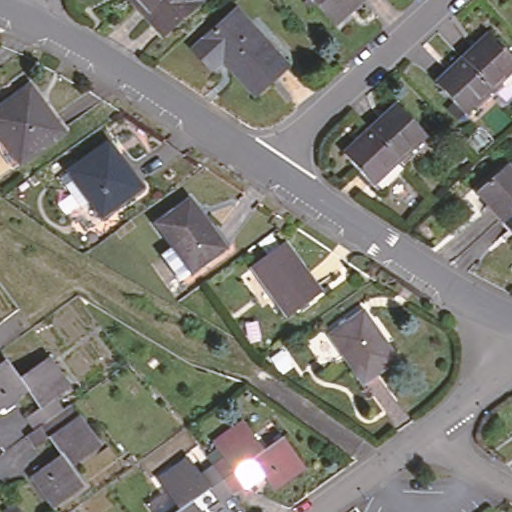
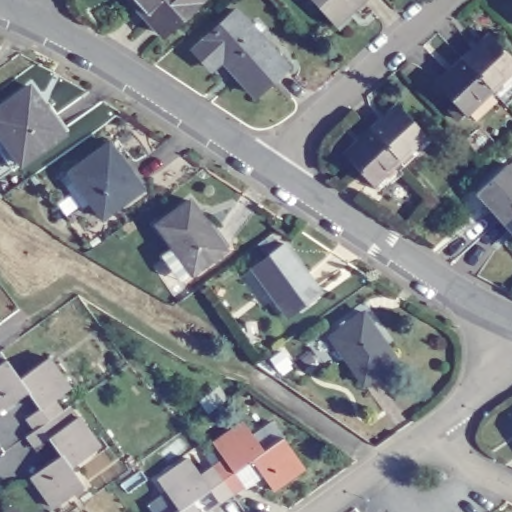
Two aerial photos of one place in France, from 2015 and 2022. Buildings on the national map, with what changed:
unchanged [(132,2),(134,0),(192,0),(157,31),(132,2)]
unchanged [(313,0),(354,0),(332,20),(313,0)]
unchanged [(234,7),(284,62),(252,90),(219,53),(207,63),(191,45),(234,7)]
unchanged [(458,55),(485,30),(512,59),(512,60),(485,85),(458,55)]
unchanged [(459,109),(432,79),(458,55),(485,85),(459,109)]
unchanged [(59,130),(16,160),(0,137),(0,101),(27,83),(59,130)]
unchanged [(367,126),(394,102),(422,131),(394,156),(367,126)]
unchanged [(367,180),(340,150),(367,126),(394,156),(367,180)]
unchanged [(105,135),(137,180),(96,209),(64,163),(105,135)]
unchanged [(467,185),(498,157),(512,173),(512,193),(492,212),(467,185)]
unchanged [(187,193),(220,242),(187,265),(154,216),(187,193)]
unchanged [(512,193),(512,235),(492,212),(512,193)]
unchanged [(280,209),(295,220),(288,231),(272,221),(280,209)]
unchanged [(282,243),(316,290),(283,313),(250,266),(282,243)]
unchanged [(359,305),(392,352),(359,376),(325,329),(359,305)]
unchanged [(71,463),(84,482),(54,504),(32,472),(60,451),(47,435),(34,445),(25,433),(33,427),(25,415),(38,405),(27,388),(0,406),(0,361),(6,356),(19,374),(47,355),(69,385),(53,396),(61,407),(66,403),(75,415),(77,413),(99,444),(71,463)]
unchanged [(207,463),(219,455),(207,440),(239,418),(258,447),(277,435),(299,465),(267,486),(247,457),(229,470),(238,482),(227,490),(207,463)]
unchanged [(152,478),(184,456),(195,471),(207,463),(227,490),(214,500),(205,486),(187,498),(197,512),(148,512),(141,502),(160,488),(152,478)]

